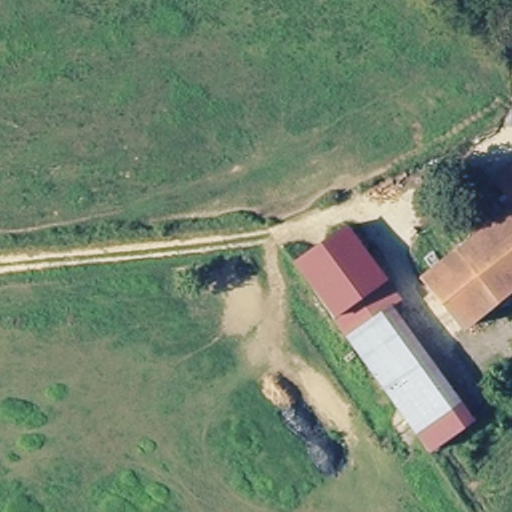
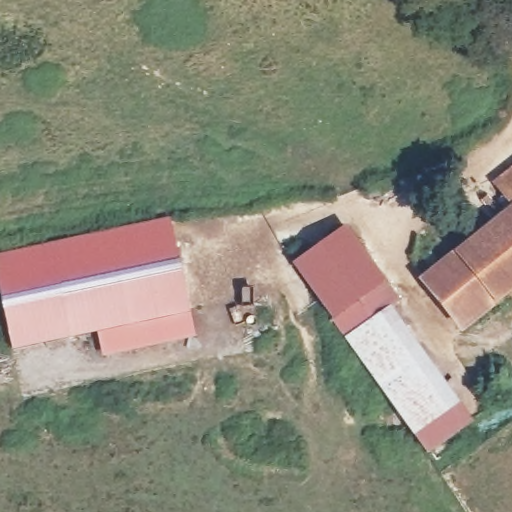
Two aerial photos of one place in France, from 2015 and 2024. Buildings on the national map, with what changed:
unchanged [(512,170),(512,201),(496,183),(512,170)]
unchanged [(459,250),(512,209),(512,289),(499,299),(459,250)]
new [(101,353),(96,332),(12,350),(0,292),(0,254),(169,218),(195,334),(101,353)]
unchanged [(385,284),(330,322),(287,264),(344,226),(385,284)]
unchanged [(469,325),(458,311),(467,302),(439,267),(459,250),(499,299),(476,317),(469,325)]
unchanged [(462,330),(422,281),(439,267),(467,302),(458,311),(469,325),(462,330)]
unchanged [(399,307),(395,312),(352,341),(344,330),(340,322),(385,288),(390,295),(399,307)]
unchanged [(421,441),(352,341),(395,312),(464,410),(472,422),(430,455),(421,441)]

